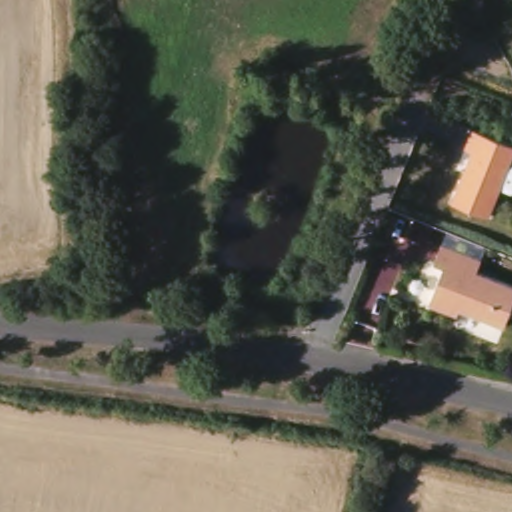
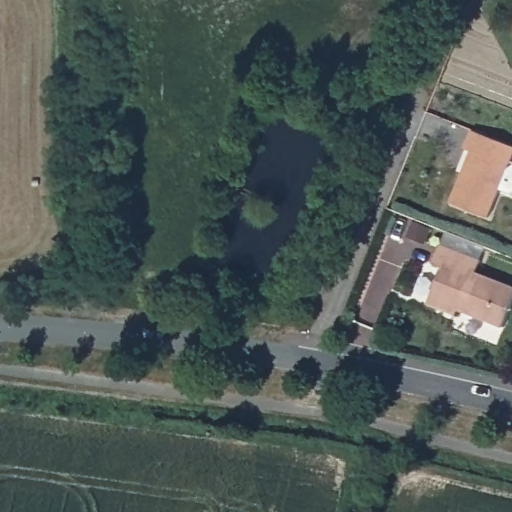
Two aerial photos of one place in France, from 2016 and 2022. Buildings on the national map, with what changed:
unchanged [(506,189),(494,217),(457,202),(477,151),(470,149),(478,130),(512,144),(512,191),(506,189)]
unchanged [(409,235),(415,221),(432,228),(426,242),(409,235)]
unchanged [(454,311),(434,303),(449,267),(439,263),(447,245),(484,260),(480,270),(512,283),(512,318),(509,326),(464,309),(462,315),(454,311)]

